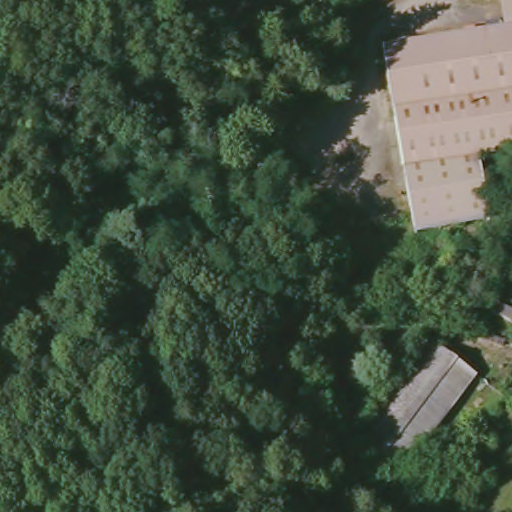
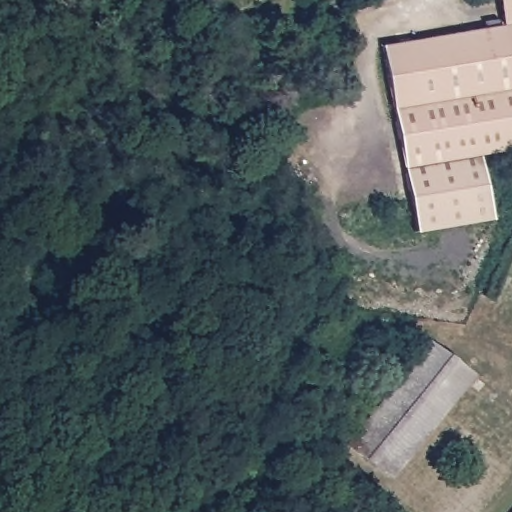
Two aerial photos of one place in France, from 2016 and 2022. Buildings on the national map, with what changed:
unchanged [(379,44),(501,24),(498,0),(512,0),(512,150),(479,156),(489,221),(413,234),(379,44)]
unchanged [(397,265),(426,258),(430,279),(401,284),(397,265)]
unchanged [(512,309),(512,322),(492,312),(497,302),(512,309)]
unchanged [(353,445),(434,342),(475,375),(394,477),(353,445)]

